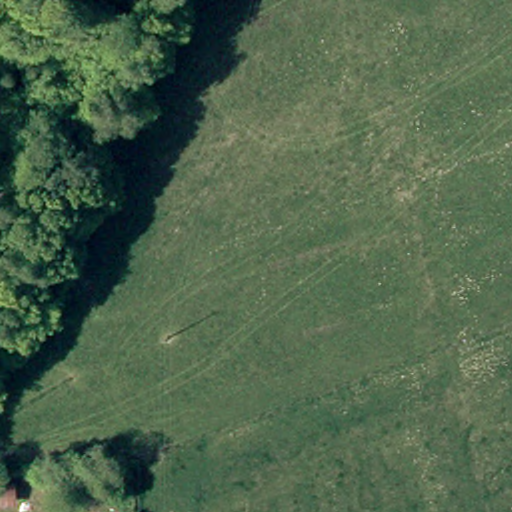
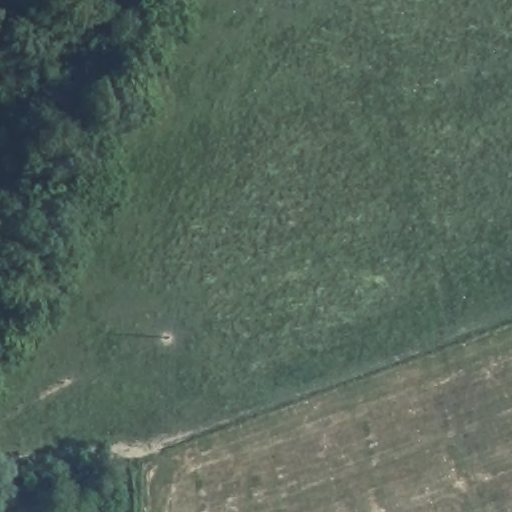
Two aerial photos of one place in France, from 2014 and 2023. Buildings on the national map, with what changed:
unchanged [(0,507),(0,486),(17,486),(17,507),(0,507)]

